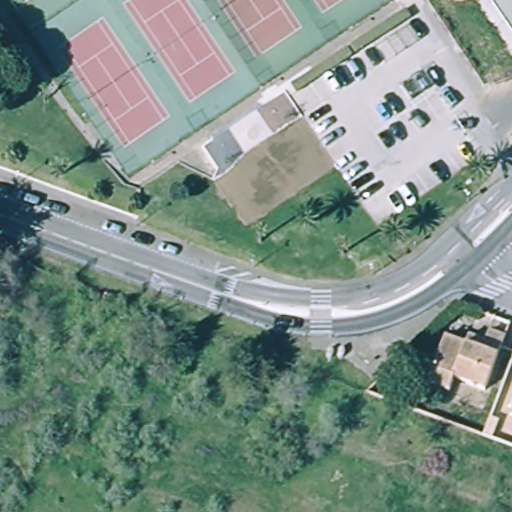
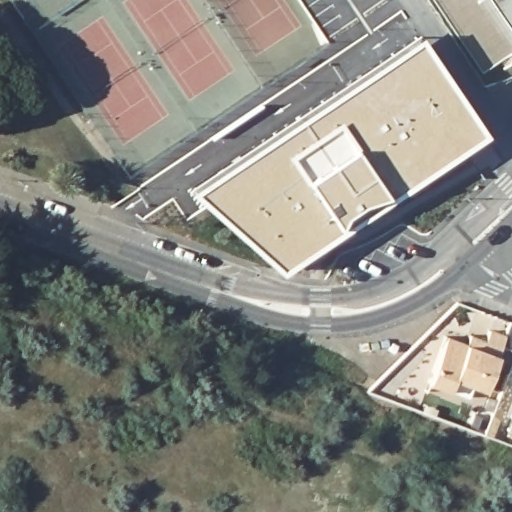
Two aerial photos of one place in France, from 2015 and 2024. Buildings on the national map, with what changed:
unchanged [(488,0),(512,0),(512,36),(488,0)]
new [(417,31),(484,131),(279,271),(186,190),(417,31)]
unchanged [(429,385),(447,338),(469,347),(472,337),(487,342),(491,332),(507,338),(486,391),(455,380),(450,393),(429,385)]
unchanged [(509,421),(512,413),(512,423),(509,421)]

